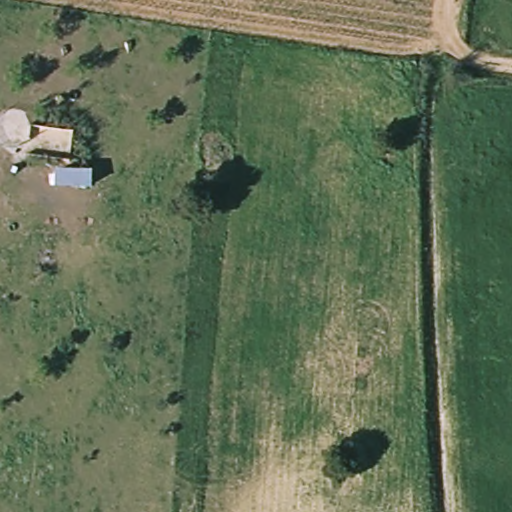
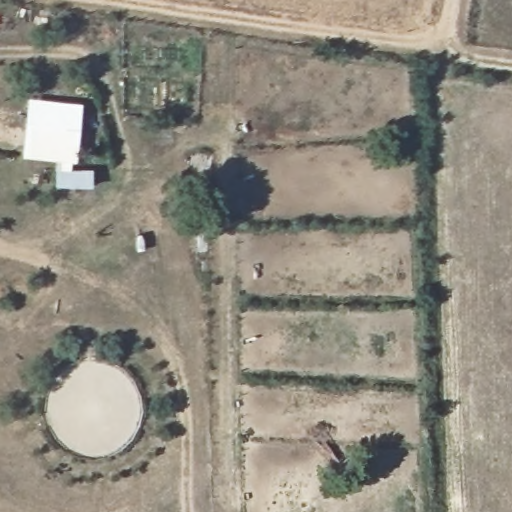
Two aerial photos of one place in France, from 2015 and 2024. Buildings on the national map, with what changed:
new [(55,168),(56,161),(23,158),(28,98),(81,104),(77,162),(71,162),(70,169),(55,168)]
unchanged [(93,187),(55,186),(55,168),(92,169),(93,187)]

